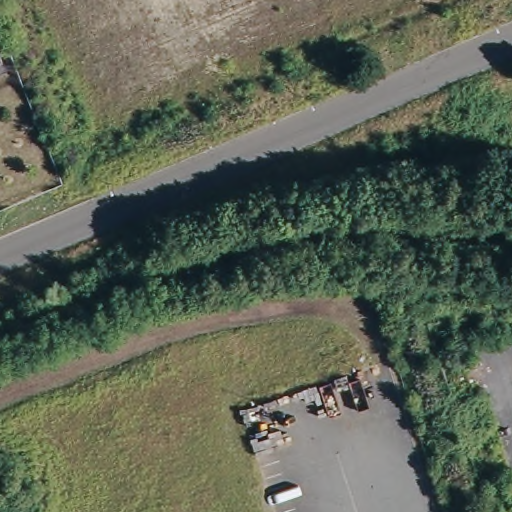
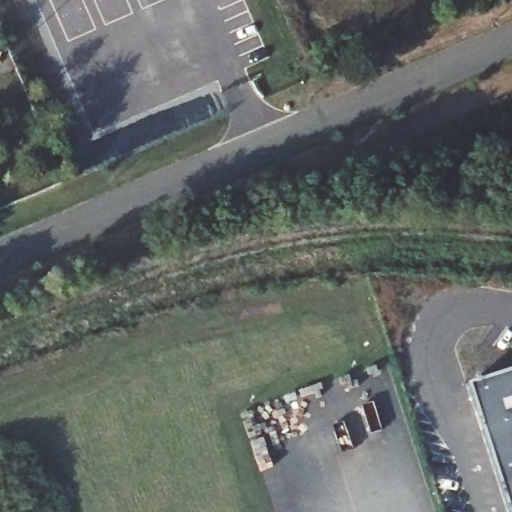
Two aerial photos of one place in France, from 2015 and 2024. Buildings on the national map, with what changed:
new [(512,373),(512,512),(507,512),(467,387),(512,373)]

